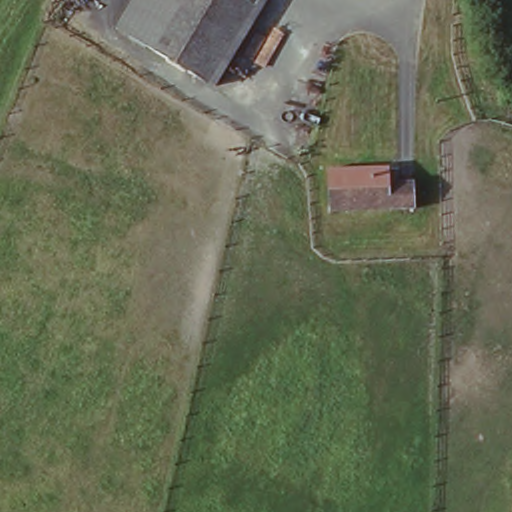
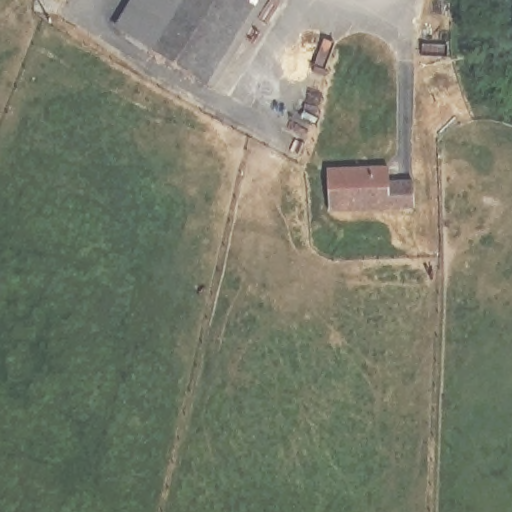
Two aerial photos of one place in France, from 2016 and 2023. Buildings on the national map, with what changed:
unchanged [(169,63),(127,43),(149,0),(257,0),(216,86),(169,63)]
unchanged [(384,164),(386,178),(411,176),(414,205),(328,215),(324,170),(384,164)]

